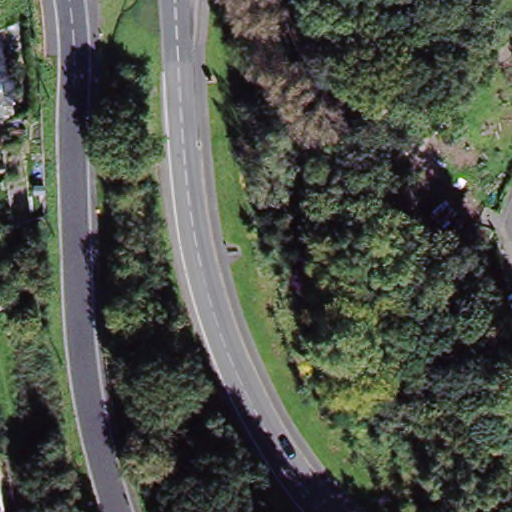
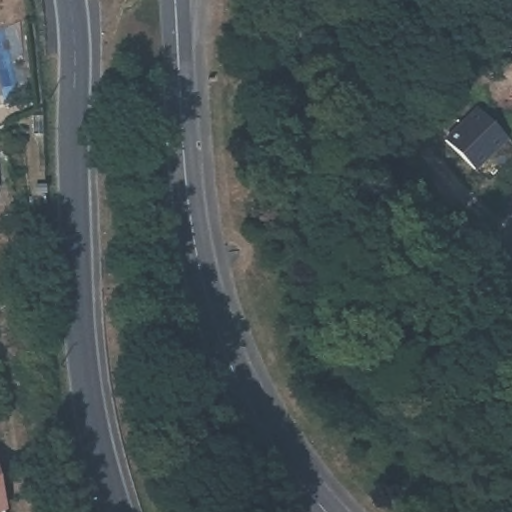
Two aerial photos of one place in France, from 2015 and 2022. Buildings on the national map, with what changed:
new [(475,107),(506,139),(472,173),(441,141),(475,107)]
unchanged [(396,130),(412,116),(426,132),(410,146),(396,130)]
unchanged [(449,200),(461,212),(452,220),(447,226),(435,213),(441,208),(449,200)]
new [(0,511),(0,476),(8,506),(0,511)]

